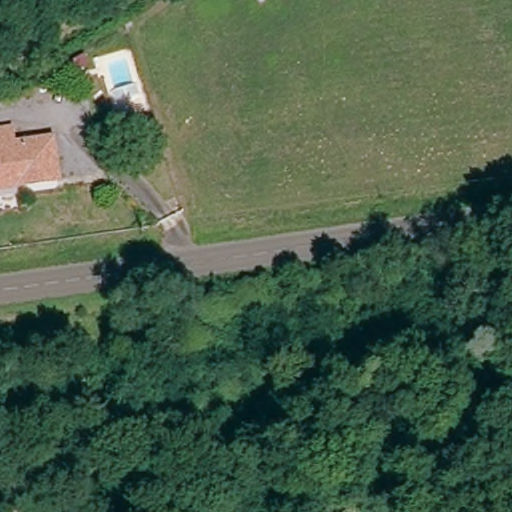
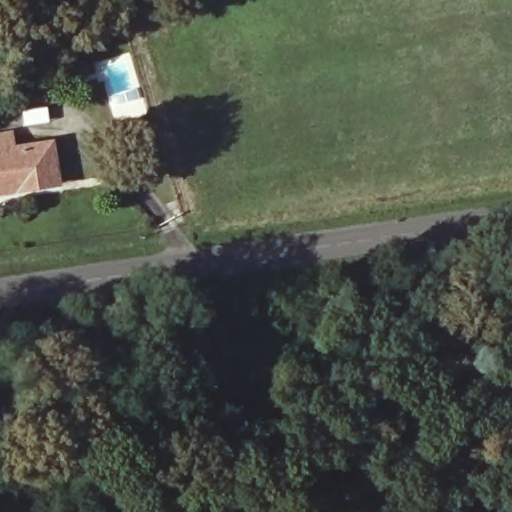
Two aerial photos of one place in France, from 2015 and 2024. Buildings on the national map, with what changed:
unchanged [(54,189),(0,196),(0,139),(9,139),(10,152),(50,148),(54,189)]

